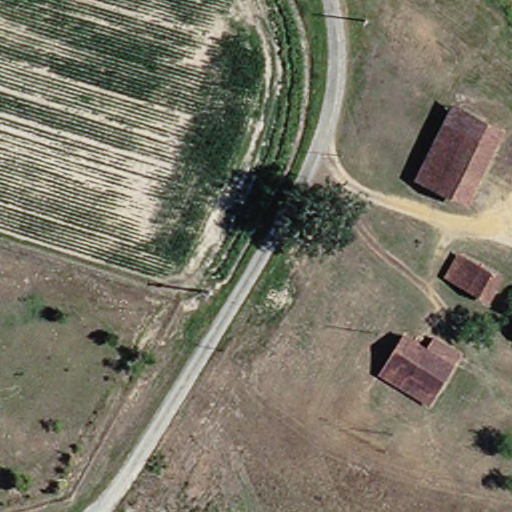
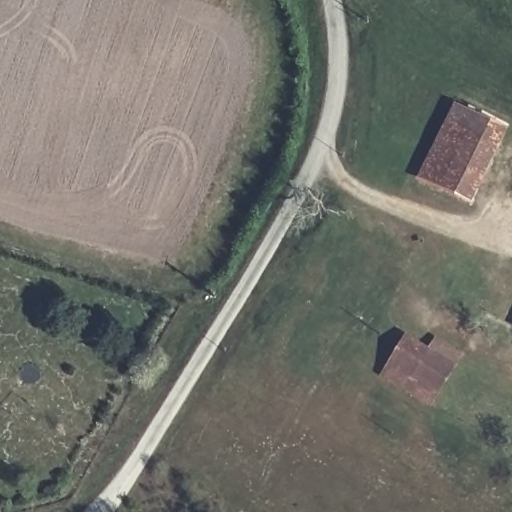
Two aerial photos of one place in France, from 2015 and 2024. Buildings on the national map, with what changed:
unchanged [(454,114),(491,140),(445,205),(412,182),(454,114)]
unchanged [(512,326),(512,327),(511,327),(512,326)]
unchanged [(380,370),(409,327),(449,355),(416,402),(380,370)]

